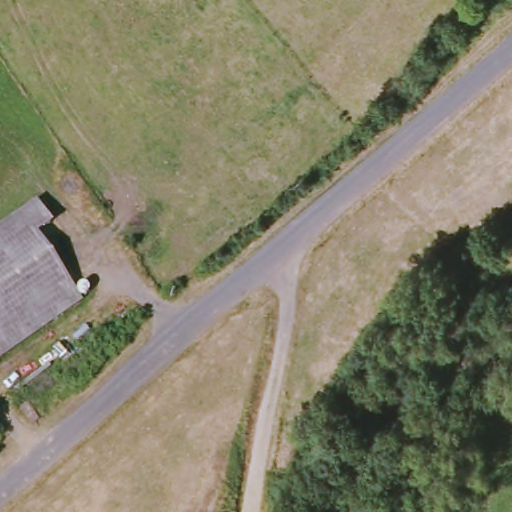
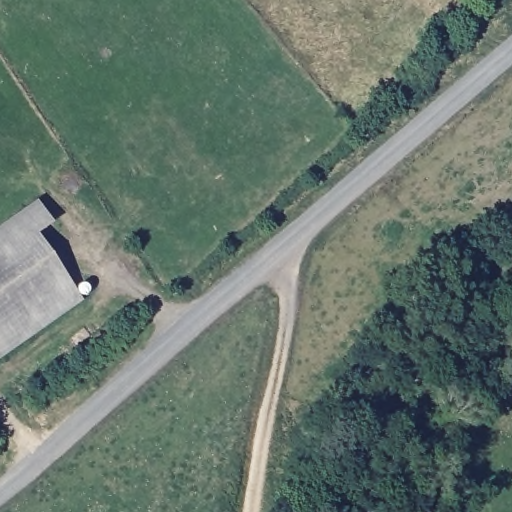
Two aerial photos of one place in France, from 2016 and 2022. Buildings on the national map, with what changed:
unchanged [(37,207),(55,228),(37,239),(80,307),(0,360),(0,232),(37,207)]

